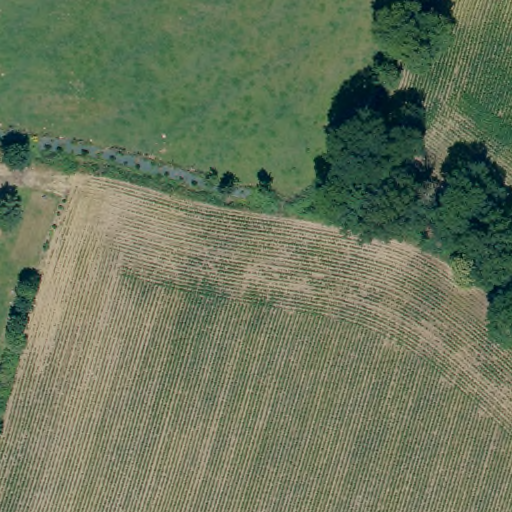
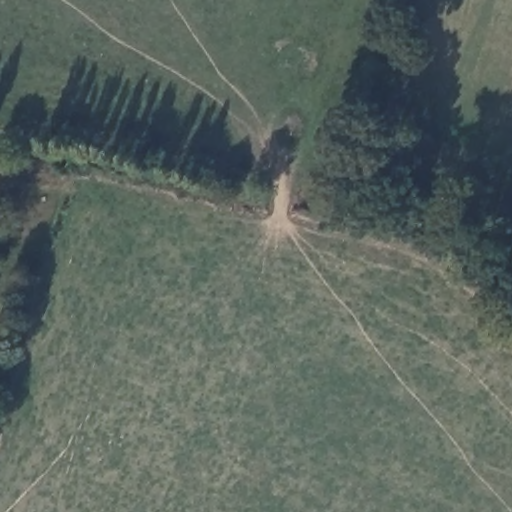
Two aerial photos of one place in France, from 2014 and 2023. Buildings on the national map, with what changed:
[]

